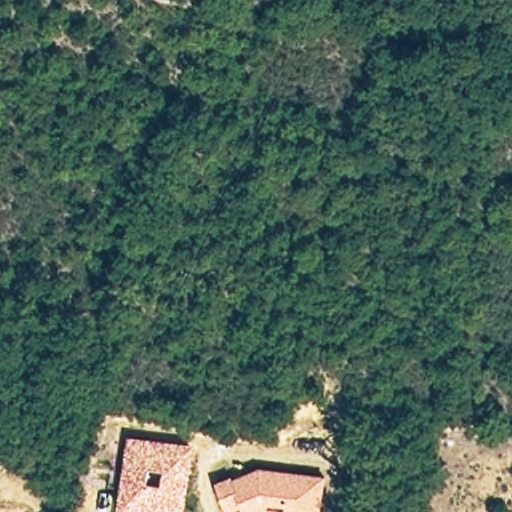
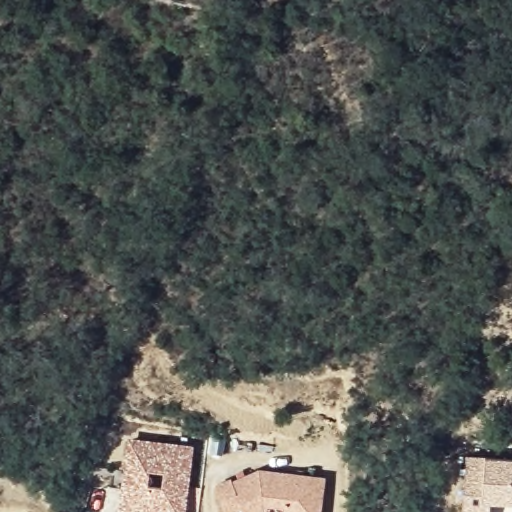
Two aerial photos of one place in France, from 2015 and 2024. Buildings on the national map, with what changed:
unchanged [(187,451),(180,512),(119,512),(126,445),(187,451)]
new [(492,502),(491,512),(463,512),(467,457),(486,458),(512,459),(512,503),(492,502)]
unchanged [(229,486),(231,490),(257,479),(322,486),(320,512),(222,512),(214,493),(229,486)]

